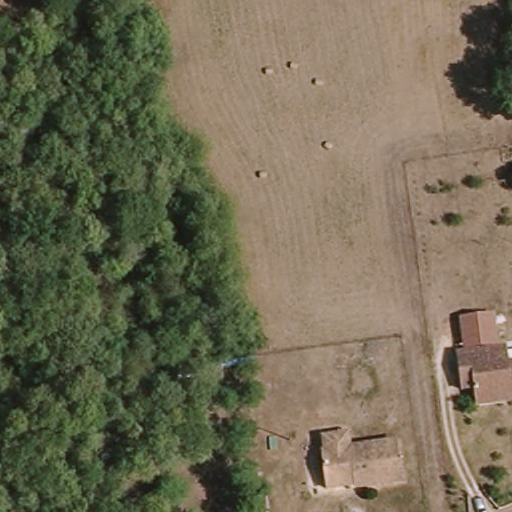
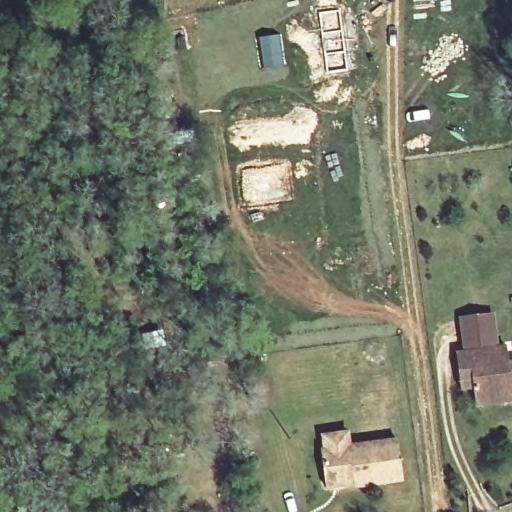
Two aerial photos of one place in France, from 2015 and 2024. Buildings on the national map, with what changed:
unchanged [(467,352),(461,317),(495,312),(499,348),(467,352)]
unchanged [(477,388),(464,389),(461,372),(459,353),(509,347),(511,362),(512,361),(512,400),(506,401),(480,405),(477,388)]
unchanged [(361,480),(326,485),(321,446),(396,436),(402,477),(361,483),(361,480)]

